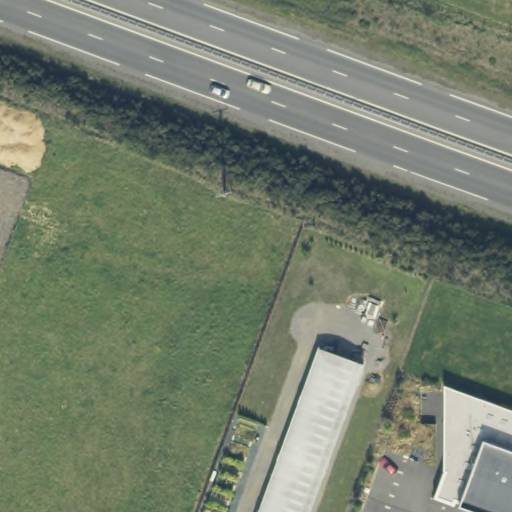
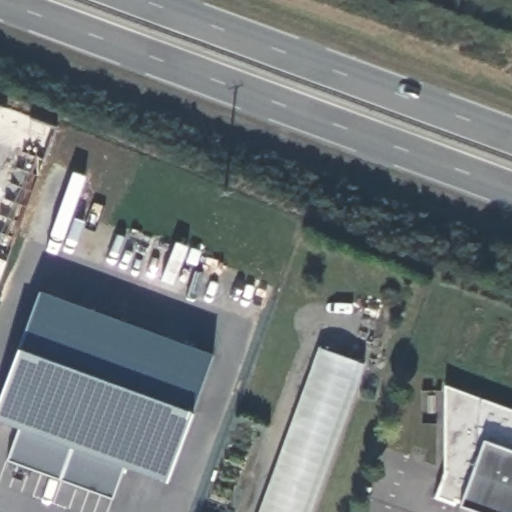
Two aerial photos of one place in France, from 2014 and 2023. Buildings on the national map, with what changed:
new [(166,482),(122,466),(112,499),(8,460),(19,428),(0,422),(0,394),(17,347),(41,291),(214,355),(166,482)]
unchanged [(319,349),(364,364),(312,512),(260,512),(319,349)]
unchanged [(512,512),(475,512),(460,506),(433,499),(444,468),(444,385),(512,410),(512,512)]

